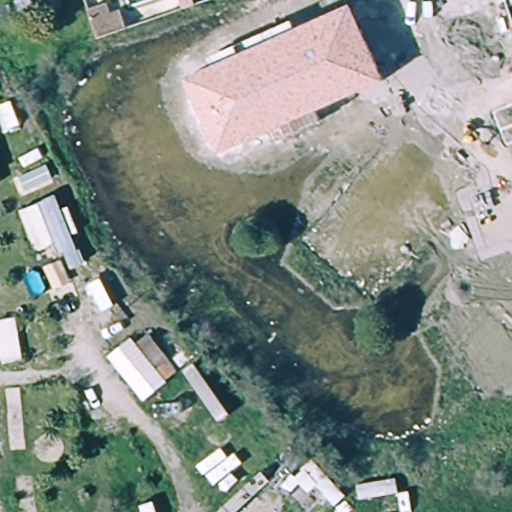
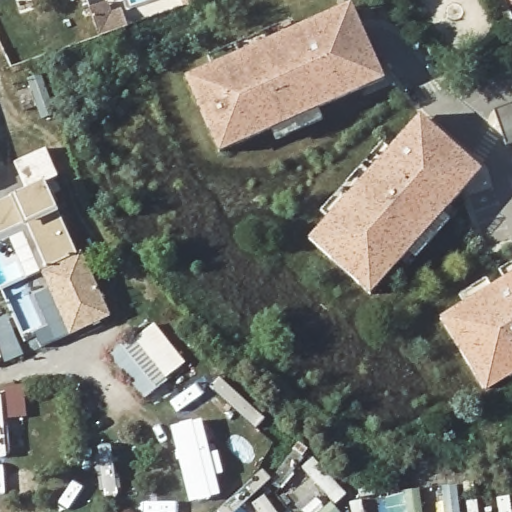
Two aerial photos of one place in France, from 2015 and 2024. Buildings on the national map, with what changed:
unchanged [(350,5),(382,82),(318,110),(321,120),(275,140),(270,132),(219,155),(185,79),(213,65),(210,58),(235,46),(291,22),(295,30),(350,5)]
new [(105,6),(107,16),(119,12),(125,28),(95,38),(85,13),(105,6)]
new [(512,143),(505,145),(493,109),(512,103),(512,143)]
new [(367,294),(308,240),(419,116),(482,170),(367,294)]
new [(382,140),(390,147),(326,214),(319,207),(382,140)]
new [(44,178),(79,250),(48,264),(27,219),(0,232),(0,199),(44,178)]
new [(48,264),(79,250),(83,248),(112,311),(73,330),(44,267),(48,264)]
new [(438,319),(512,275),(512,376),(485,392),(438,319)]
new [(112,358),(154,324),(186,364),(144,398),(112,358)]

